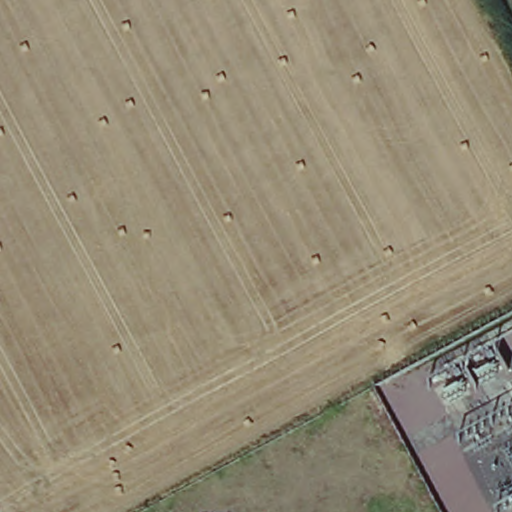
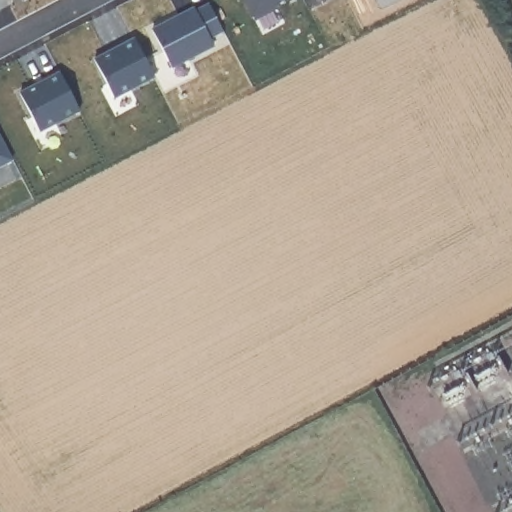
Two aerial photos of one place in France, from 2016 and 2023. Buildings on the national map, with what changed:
new [(279,7),(256,20),(245,0),(282,0),(276,3),(279,7)]
new [(211,38),(216,46),(173,67),(153,30),(195,7),(197,11),(211,4),(225,31),(211,38)]
new [(156,76),(115,97),(95,60),(111,51),(113,53),(122,48),(121,46),(136,39),(156,76)]
new [(81,110),(41,131),(21,93),(37,85),(38,87),(48,82),(46,80),(61,72),(81,110)]
new [(0,166),(0,133),(14,159),(0,166)]

